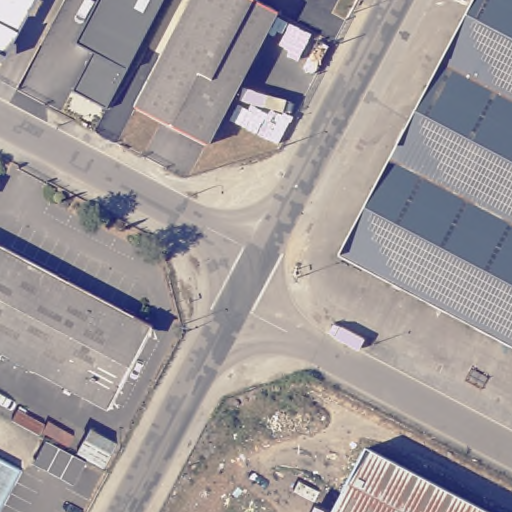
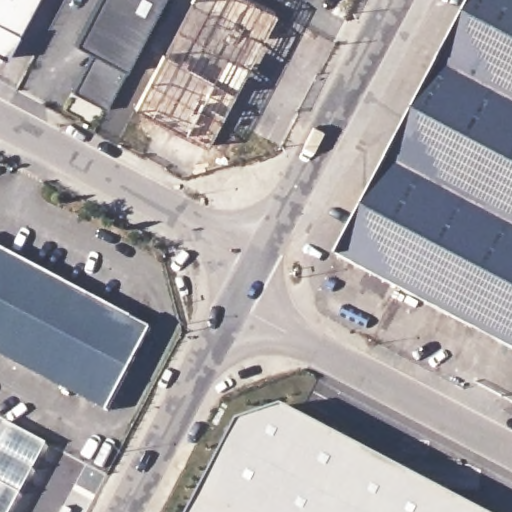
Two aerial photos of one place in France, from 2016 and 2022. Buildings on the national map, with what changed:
unchanged [(0,52),(0,0),(41,0),(11,57),(0,52)]
unchanged [(107,108),(74,91),(97,52),(75,41),(97,0),(162,0),(127,69),(107,108)]
unchanged [(136,109),(192,0),(247,0),(275,14),(207,145),(136,109)]
unchanged [(342,256),(477,0),(512,0),(512,346),(342,256)]
unchanged [(0,248),(151,328),(107,411),(0,356),(0,248)]
new [(240,421),(283,407),(484,512),(192,512),(240,421)]
demolished [(368,443),(498,512),(332,512),(368,443)]
demolished [(1,512),(0,512),(0,458),(24,471),(1,512)]

